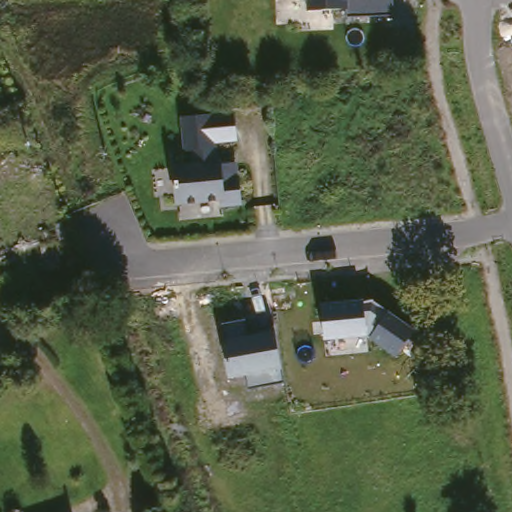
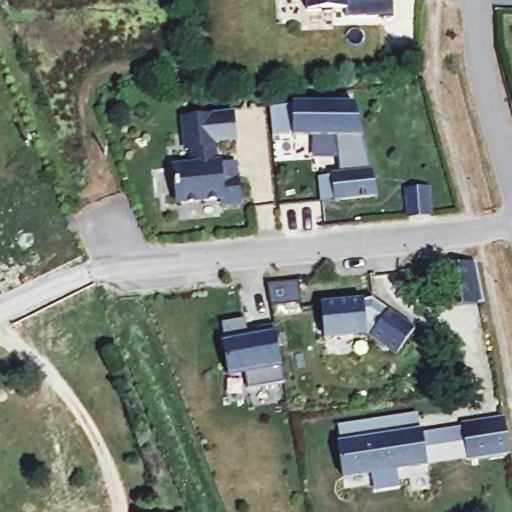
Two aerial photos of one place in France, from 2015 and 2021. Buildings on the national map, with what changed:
unchanged [(345,9),(307,12),(307,0),(391,0),(392,18),(344,18),(345,9)]
new [(340,179),(336,139),(291,140),(290,138),(270,141),(266,114),(290,110),(290,108),(351,109),(378,199),(335,204),(322,205),(320,181),(332,179),(340,179)]
unchanged [(231,121),(234,147),(208,150),(209,164),(215,163),(216,172),(220,171),(221,174),(235,172),(237,185),(241,210),(224,213),(223,207),(179,213),(174,178),(194,174),(192,159),(185,159),(180,128),(231,121)]
new [(429,189),(432,219),(411,222),(408,192),(429,189)]
unchanged [(366,337),(323,342),(318,304),(369,299),(414,329),(395,357),(366,337)]
unchanged [(249,389),(246,376),(228,379),(219,323),(246,319),(249,332),(274,328),(283,383),(249,389)]
new [(338,448),(341,448),(338,431),(349,429),(411,421),(419,419),(422,437),(423,437),(427,467),(394,473),(374,477),(343,481),(338,448)]
new [(464,431),(504,426),(509,457),(468,462),(464,432),(464,431)]
new [(464,432),(468,462),(427,467),(423,437),(464,432)]

